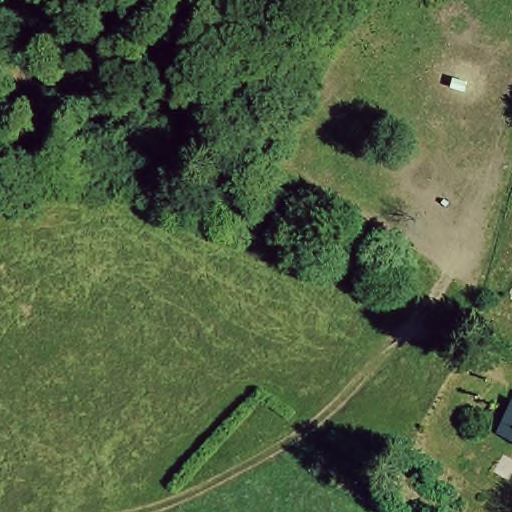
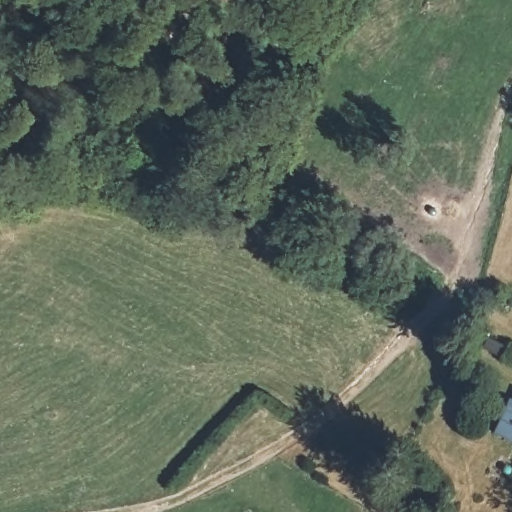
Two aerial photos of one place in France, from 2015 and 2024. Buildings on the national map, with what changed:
unchanged [(508,405),(512,407),(512,439),(496,430),(508,405)]

